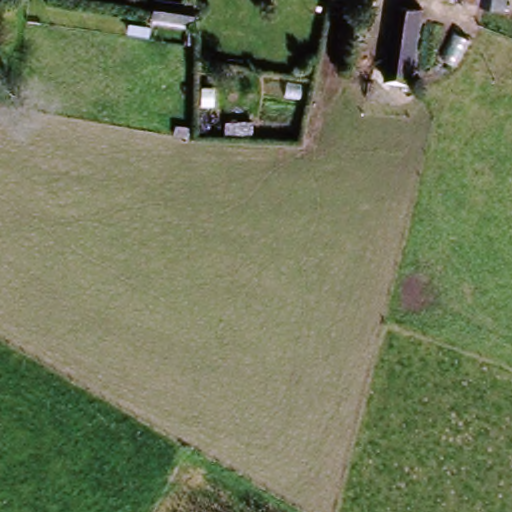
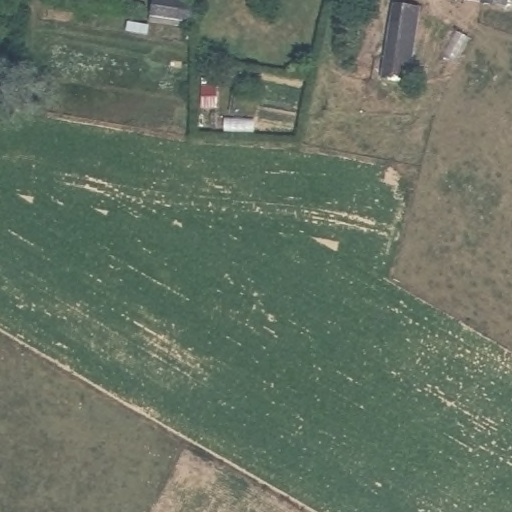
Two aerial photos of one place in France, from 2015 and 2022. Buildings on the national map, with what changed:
unchanged [(507,12),(462,5),(463,0),(509,0),(507,12)]
unchanged [(419,13),(405,90),(374,85),(388,8),(419,13)]

